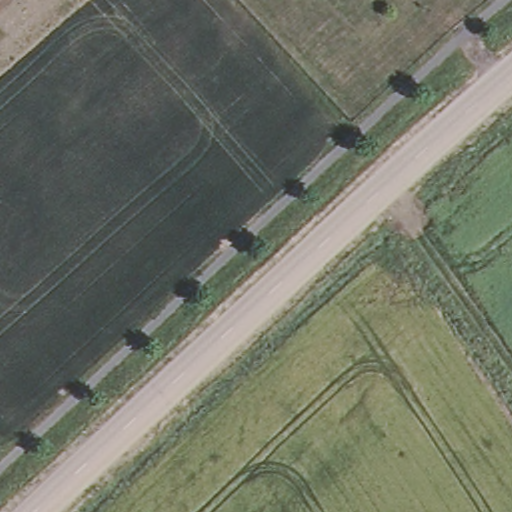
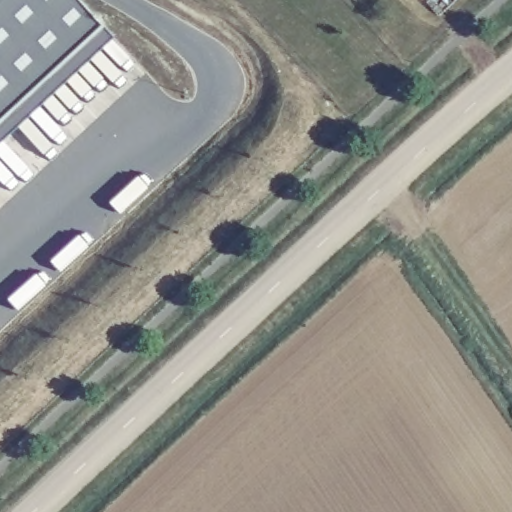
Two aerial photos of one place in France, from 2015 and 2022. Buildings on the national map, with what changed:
new [(104,26),(0,121),(0,0),(80,0),(104,26)]

